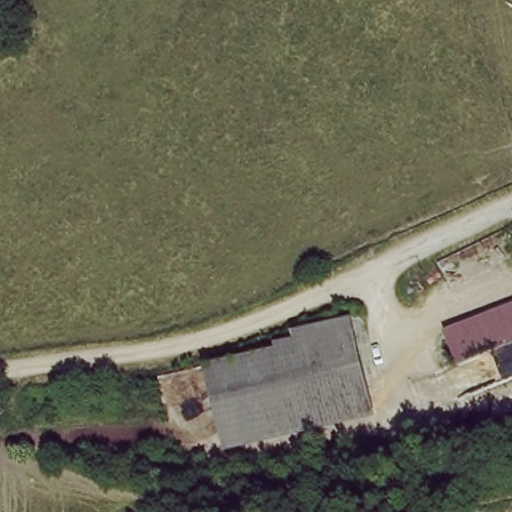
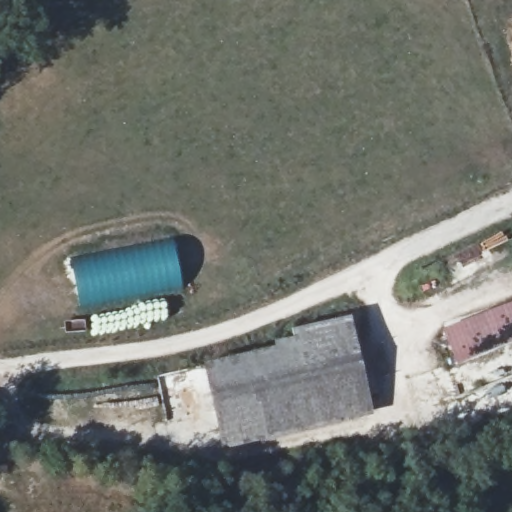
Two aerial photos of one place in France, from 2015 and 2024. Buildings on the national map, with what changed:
new [(112,249),(173,239),(183,292),(140,301),(78,312),(68,258),(112,249)]
unchanged [(461,361),(457,351),(448,330),(512,304),(512,341),(461,361)]
unchanged [(348,325),(362,383),(314,395),(300,337),(348,325)]
unchanged [(209,372),(280,356),(278,350),(297,346),(293,339),(300,337),(314,395),(362,383),(364,390),(367,403),(224,436),(222,425),(209,372)]

